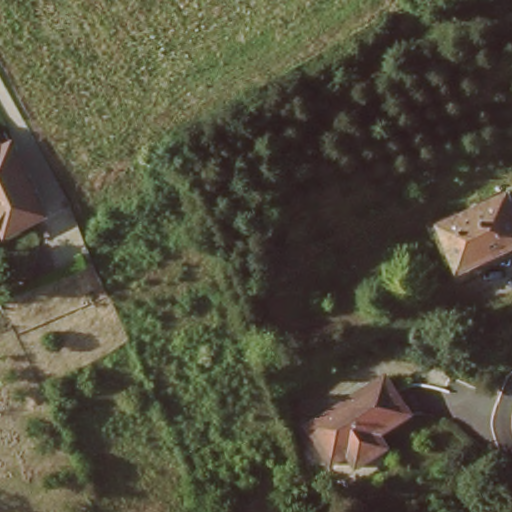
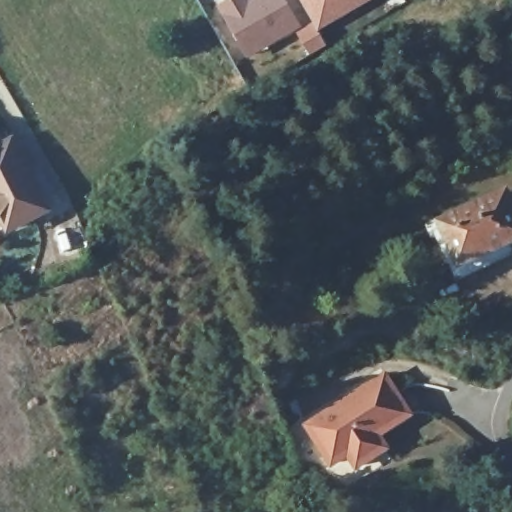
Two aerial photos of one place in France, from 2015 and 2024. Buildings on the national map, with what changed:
new [(232,0),(286,0),(302,31),(249,59),(218,7),(232,0)]
new [(321,32),(302,0),(375,0),(321,32)]
unchanged [(12,144),(48,209),(11,229),(0,210),(0,144),(5,148),(12,144)]
unchanged [(510,191),(512,194),(512,242),(465,264),(445,222),(510,191)]
unchanged [(409,412),(378,432),(387,446),(359,463),(351,450),(333,462),(308,422),(385,372),(409,412)]

